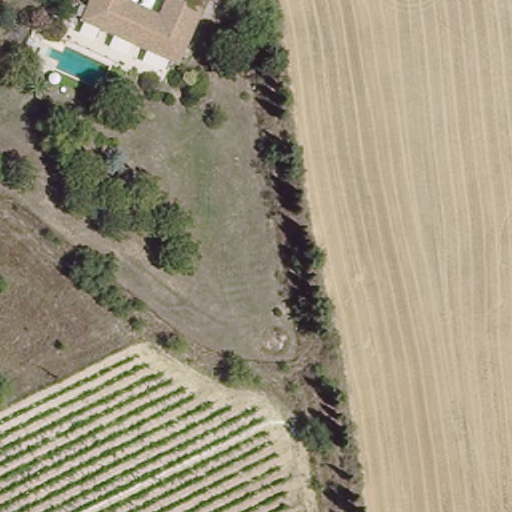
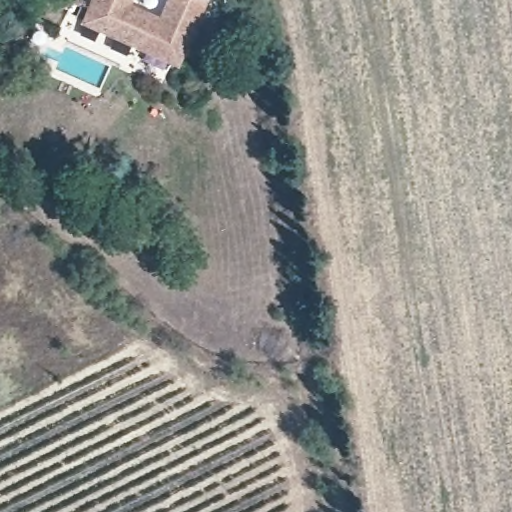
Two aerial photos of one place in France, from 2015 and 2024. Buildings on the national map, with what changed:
unchanged [(162,58),(101,31),(96,40),(83,35),(72,31),(81,6),(93,10),(97,0),(131,0),(127,9),(161,25),(172,0),(208,0),(186,50),(182,49),(175,63),(171,75),(158,69),(162,58)]

